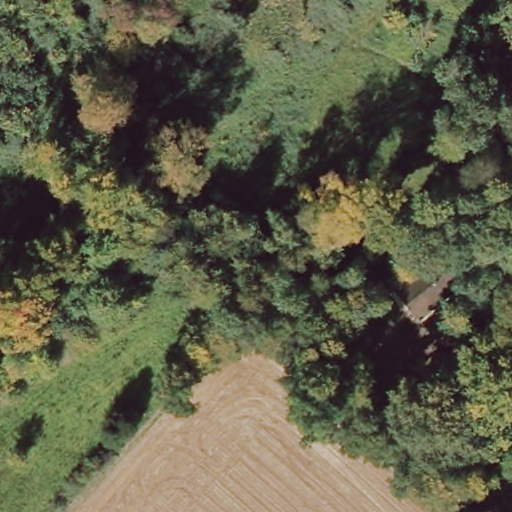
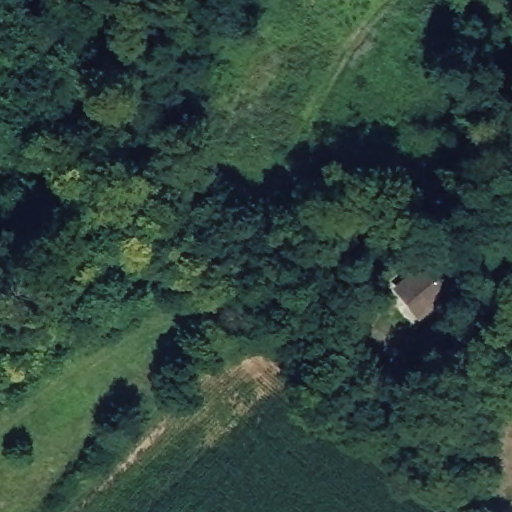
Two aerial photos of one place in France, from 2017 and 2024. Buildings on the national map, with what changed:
unchanged [(410,366),(369,315),(436,257),(472,300),(410,366)]

